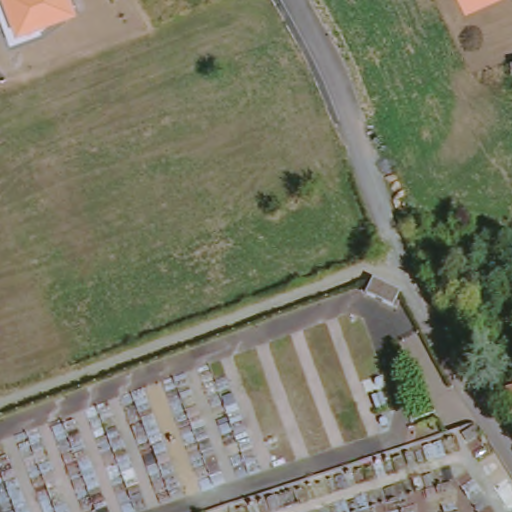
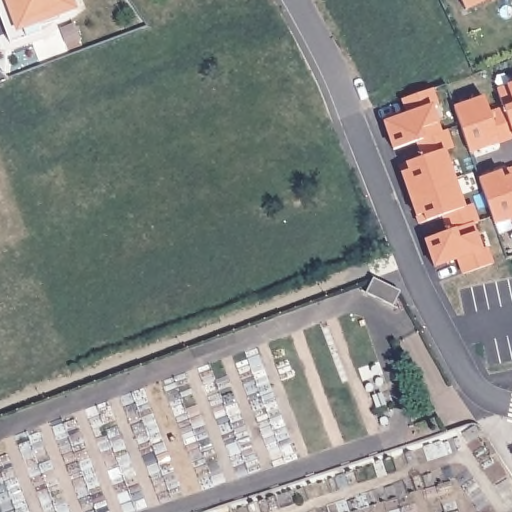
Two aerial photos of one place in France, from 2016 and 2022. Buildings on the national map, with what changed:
unchanged [(42,22),(45,32),(10,44),(0,17),(0,0),(70,0),(73,10),(42,22)]
unchanged [(460,0),(490,0),(466,12),(460,0)]
new [(512,86),(512,139),(472,154),(455,107),(512,86)]
new [(458,260),(435,268),(423,240),(447,232),(442,216),(426,222),(419,224),(416,217),(398,168),(422,158),(415,141),(392,149),(383,123),(407,114),(402,100),(433,89),(453,149),(447,152),(465,207),(473,204),(493,262),(463,274),(458,260)]
new [(502,172),(505,179),(512,176),(512,177),(512,220),(496,226),(480,180),(502,172)]
demolished [(506,388),(512,387),(512,411),(512,412),(506,388)]
unchanged [(477,427),(484,429),(490,438),(487,449),(458,441),(462,424),(477,427)]

